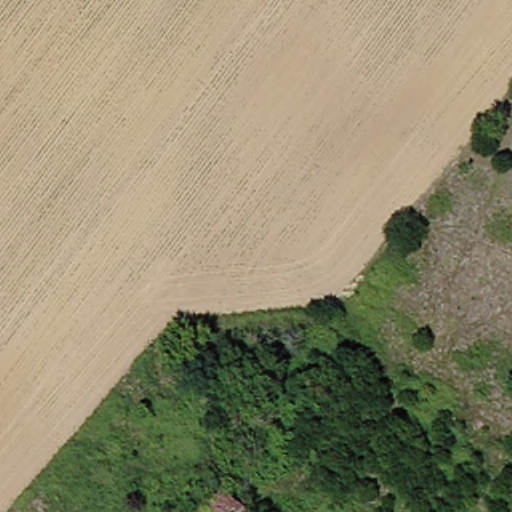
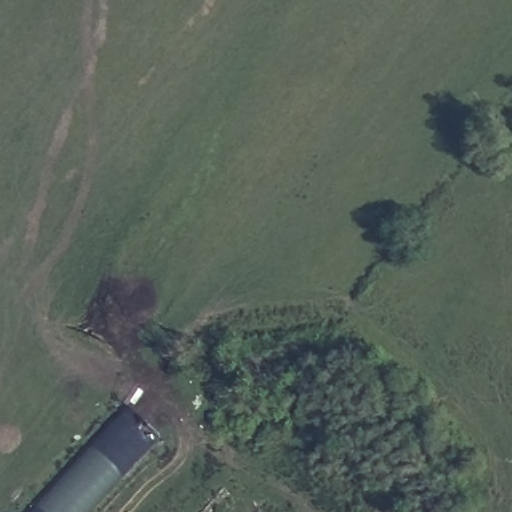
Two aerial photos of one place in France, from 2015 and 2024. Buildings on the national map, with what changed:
new [(157,437),(90,512),(20,512),(124,403),(157,437)]
demolished [(238,512),(184,512),(207,485),(238,512)]

